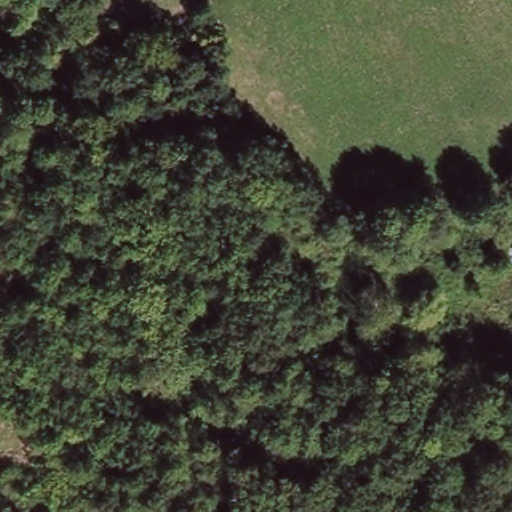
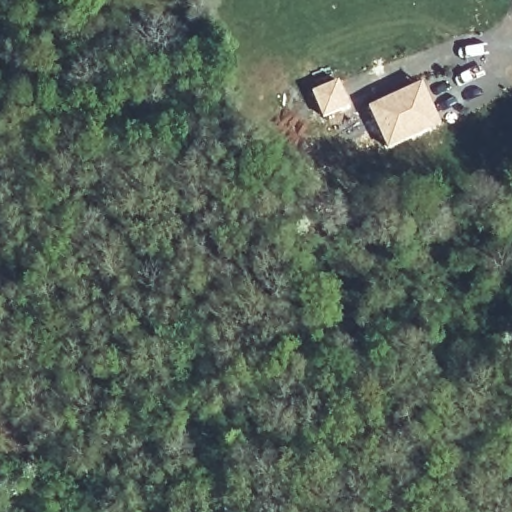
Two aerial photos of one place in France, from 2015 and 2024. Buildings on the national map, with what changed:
new [(340,77),(353,106),(323,118),(310,90),(340,77)]
new [(423,81),(443,125),(387,149),(367,106),(423,81)]

